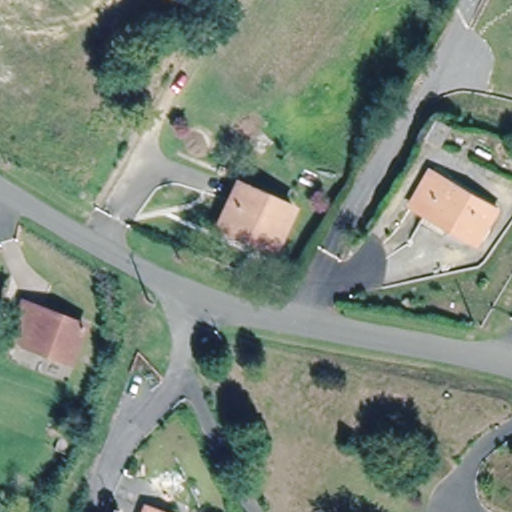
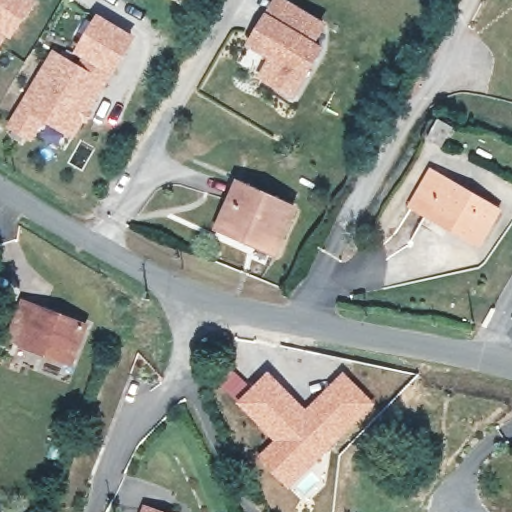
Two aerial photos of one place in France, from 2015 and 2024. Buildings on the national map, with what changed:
new [(0,0),(37,0),(0,54),(0,0)]
new [(319,42),(324,47),(294,99),(259,79),(269,59),(246,46),(266,12),(273,0),(288,0),(329,25),(319,42)]
new [(70,60),(99,12),(135,36),(75,139),(46,121),(33,142),(8,128),(54,49),(70,60)]
unchanged [(499,210),(480,243),(417,206),(436,173),(499,210)]
unchanged [(295,209),(275,252),(222,229),(242,185),(295,209)]
unchanged [(85,324),(72,359),(13,337),(25,302),(85,324)]
new [(233,370),(252,387),(268,370),(306,407),(343,371),(376,402),(290,488),(258,457),(273,440),(219,385),(233,370)]

